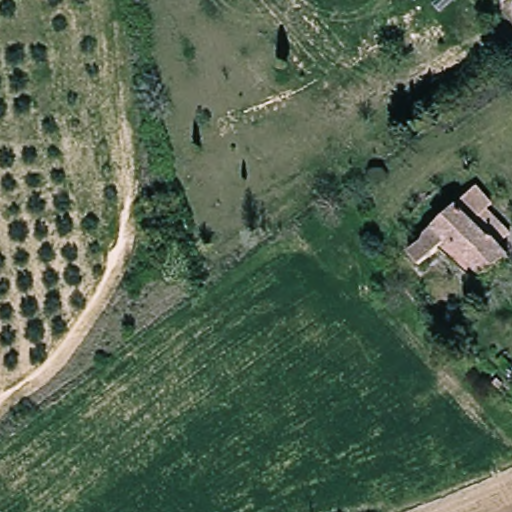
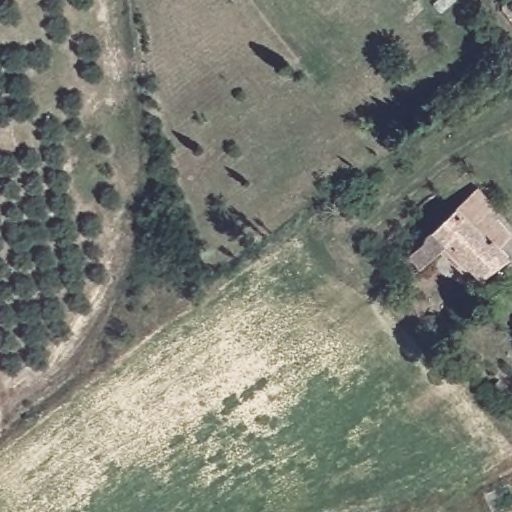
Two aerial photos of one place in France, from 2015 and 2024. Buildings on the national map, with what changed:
unchanged [(478,278),(449,242),(413,274),(402,261),(471,196),(484,185),(497,200),(493,204),(511,225),(503,232),(512,243),(512,255),(494,271),(478,278)]

